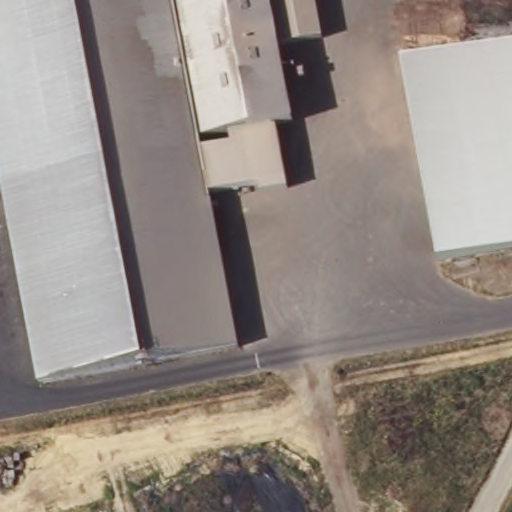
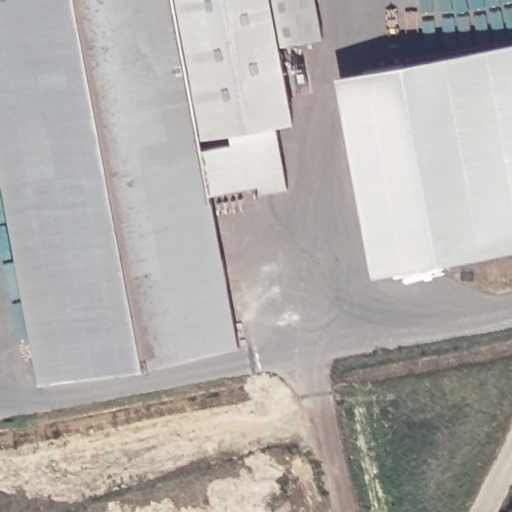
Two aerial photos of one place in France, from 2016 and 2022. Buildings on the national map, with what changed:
unchanged [(0,0),(179,0),(207,150),(7,187),(0,147),(0,0)]
unchanged [(281,45),(294,121),(276,125),(288,188),(262,193),(261,184),(215,193),(207,150),(179,0),(316,0),(323,37),(281,45)]
unchanged [(440,260),(404,61),(512,42),(512,248),(440,260)]
new [(373,272),(337,74),(404,61),(440,260),(373,272)]
unchanged [(207,150),(215,193),(244,346),(45,383),(7,187),(207,150)]

